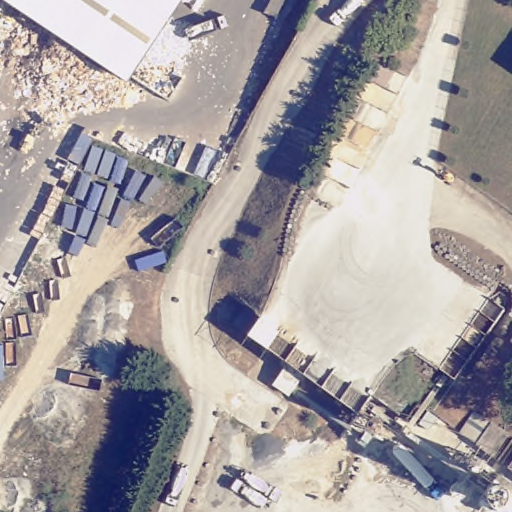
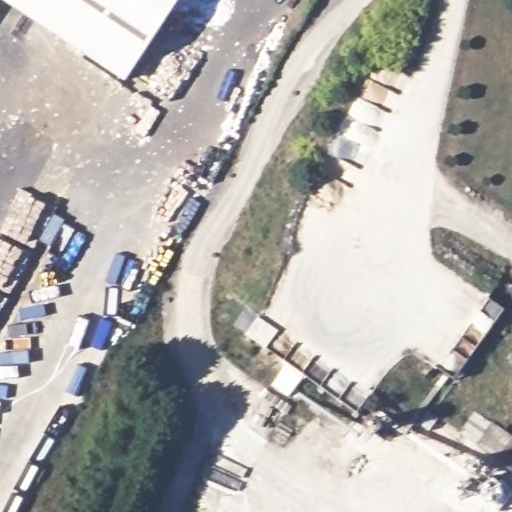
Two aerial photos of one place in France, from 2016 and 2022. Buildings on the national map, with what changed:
unchanged [(183,0),(128,83),(7,0),(183,0)]
unchanged [(485,420),(510,438),(497,456),(472,438),(485,420)]
unchanged [(512,450),(512,467),(504,462),(512,450)]

